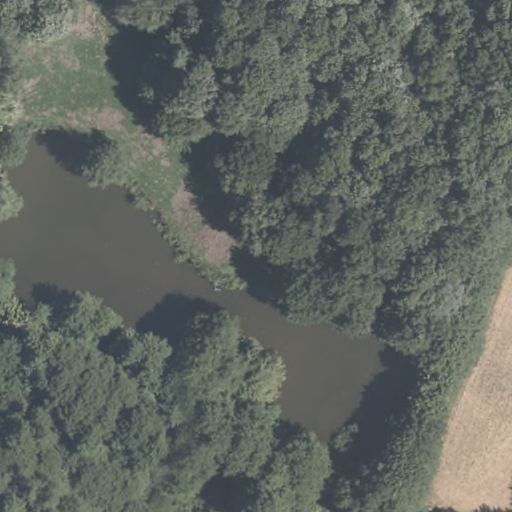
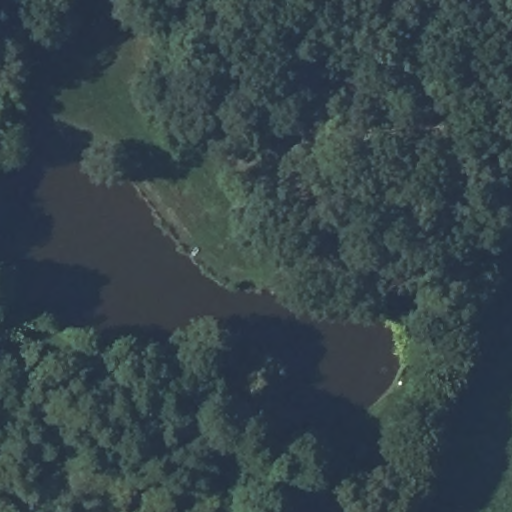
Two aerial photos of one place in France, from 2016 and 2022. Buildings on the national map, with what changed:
[]

